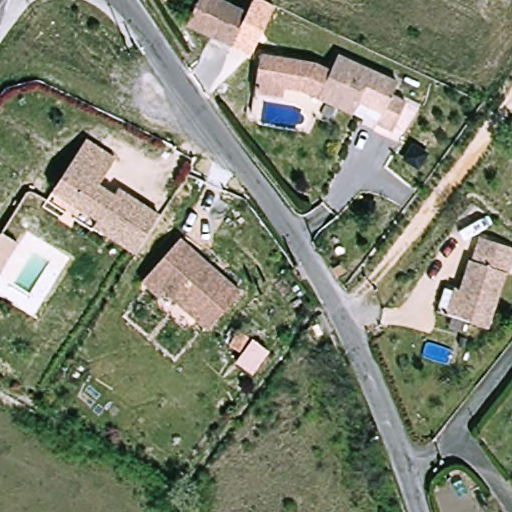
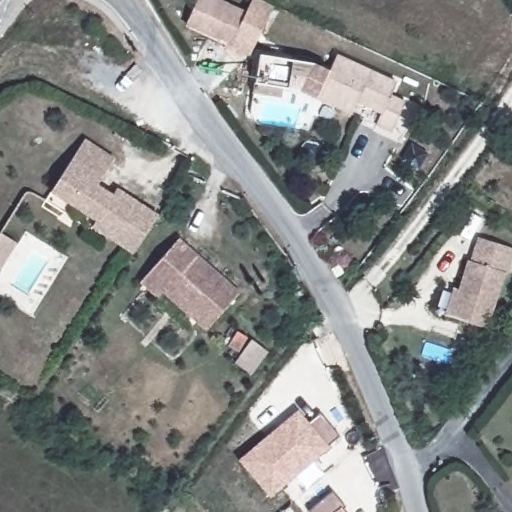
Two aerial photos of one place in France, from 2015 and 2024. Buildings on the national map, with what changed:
unchanged [(250,15),(234,46),(188,24),(200,0),(219,0),(250,15)]
unchanged [(253,0),(265,0),(277,6),(250,55),(234,46),(250,15),(247,14),(253,0)]
unchanged [(303,90),(286,88),(285,97),(256,94),(259,75),(261,56),(316,64),(332,71),(340,56),(398,83),(392,95),(407,103),(393,131),(378,124),(384,112),(368,105),(360,101),(356,109),(353,115),(320,98),(303,90)]
unchanged [(50,190),(59,176),(66,165),(82,139),(112,157),(97,181),(95,184),(111,194),(113,190),(115,187),(124,192),(157,213),(156,214),(140,240),(133,251),(91,225),(63,207),(67,201),(50,190)]
new [(5,223),(21,233),(5,260),(0,257),(0,232),(5,223)]
unchanged [(140,280),(173,237),(236,286),(211,318),(205,326),(160,290),(158,288),(153,295),(138,282),(140,280)]
unchanged [(458,290),(467,262),(470,262),(477,238),(512,248),(512,255),(506,273),(503,272),(487,327),(450,315),(445,313),(453,290),(458,290)]
unchanged [(339,265),(342,272),(335,276),(331,269),(339,265)]
unchanged [(227,343),(231,338),(225,335),(228,327),(235,330),(246,337),(239,350),(227,343)]
new [(249,338),(266,348),(253,373),(235,363),(249,338)]
new [(270,498),(238,460),(297,409),(310,423),(320,414),(338,436),(328,445),(330,447),(270,498)]
new [(309,512),(308,511),(332,491),(345,506),(342,508),(346,512),(309,512)]

